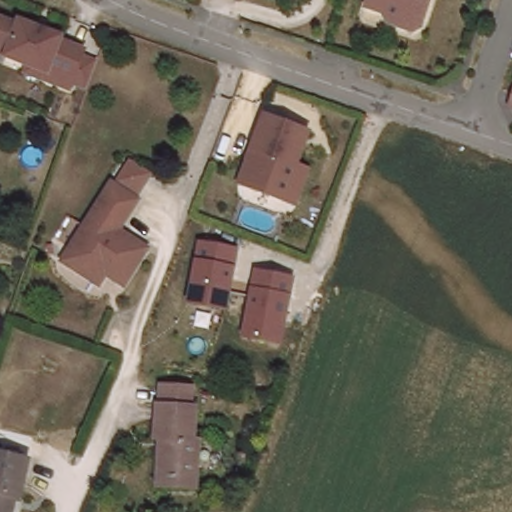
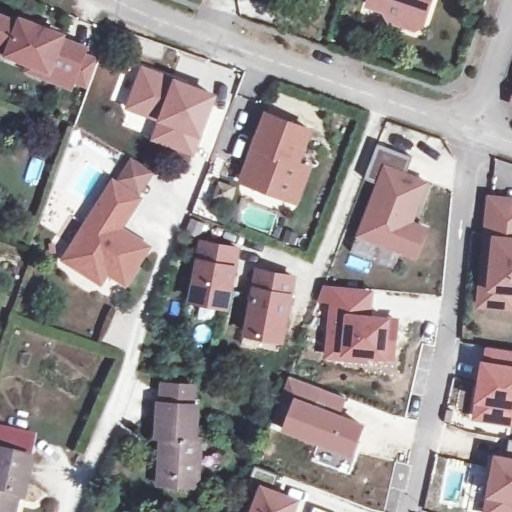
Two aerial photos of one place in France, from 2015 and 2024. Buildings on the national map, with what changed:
unchanged [(401,17),(388,21),(380,10),(365,5),(367,0),(429,0),(421,24),(401,17)]
unchanged [(11,45),(0,40),(0,17),(19,24),(21,18),(37,24),(36,30),(46,33),(47,30),(48,28),(64,34),(62,40),(86,50),(70,86),(42,75),(29,70),(32,62),(7,54),(11,45)]
new [(142,64),(174,76),(157,120),(125,109),(142,64)]
new [(157,120),(174,76),(218,94),(195,156),(150,140),(157,120)]
unchanged [(506,101),(512,79),(512,104),(506,101)]
unchanged [(297,200),(282,195),(246,181),(240,180),(252,145),(265,110),(309,127),(296,160),(310,165),(297,200)]
new [(380,182),(366,176),(379,141),(414,155),(407,172),(428,180),(417,211),(411,210),(407,218),(428,225),(417,254),(361,233),(380,182)]
unchanged [(81,275),(66,267),(107,185),(139,200),(131,216),(125,229),(147,239),(127,280),(107,270),(101,285),(81,275)]
new [(486,266),(496,267),(499,236),(494,236),(498,195),(512,197),(512,304),(483,301),(486,266)]
unchanged [(241,249),(231,310),(190,302),(200,244),(241,249)]
unchanged [(297,276),(287,342),(244,335),(259,270),(297,276)]
new [(374,290),(373,315),(392,317),(401,317),(397,362),(386,360),(371,358),(371,365),(326,361),(329,301),(318,301),(324,285),(374,290)]
new [(512,350),(512,426),(473,418),(476,403),(484,360),(487,346),(512,350)]
new [(347,400),(342,415),(365,424),(353,455),(283,430),(292,403),(279,399),(289,375),(347,400)]
unchanged [(163,483),(164,476),(166,436),(160,435),(163,385),(194,387),(194,405),(201,405),(198,440),(204,440),(202,477),(202,485),(163,483)]
new [(487,495),(495,453),(507,455),(510,440),(512,441),(512,512),(484,512),(487,495)]
unchanged [(0,454),(31,461),(23,499),(17,498),(15,512),(0,512),(0,454)]
new [(277,476),(272,486),(301,500),(296,512),(249,512),(257,491),(248,489),(256,468),(277,476)]

